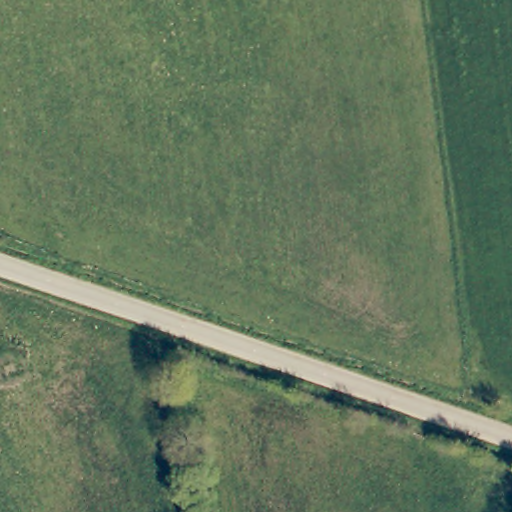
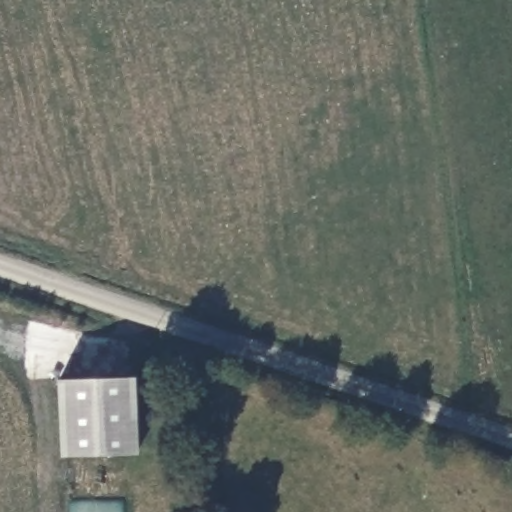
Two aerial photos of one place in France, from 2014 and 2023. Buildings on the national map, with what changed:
new [(59,378),(136,376),(138,452),(60,456),(59,378)]

